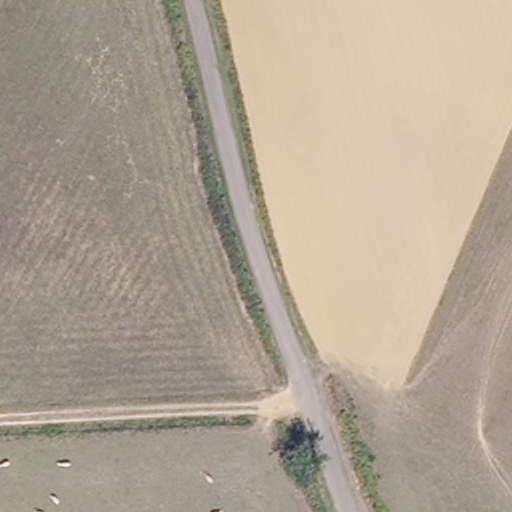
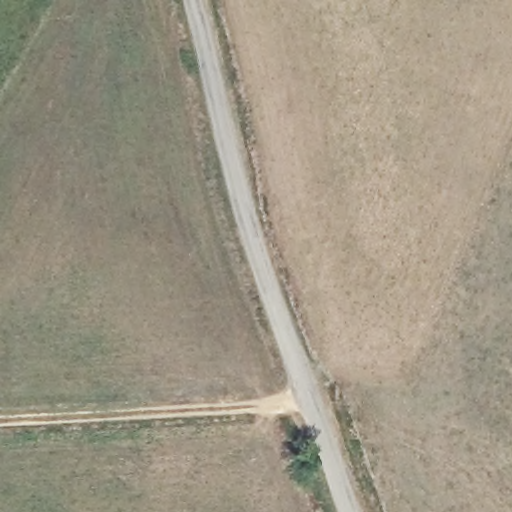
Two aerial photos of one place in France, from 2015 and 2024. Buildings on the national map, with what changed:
[]

